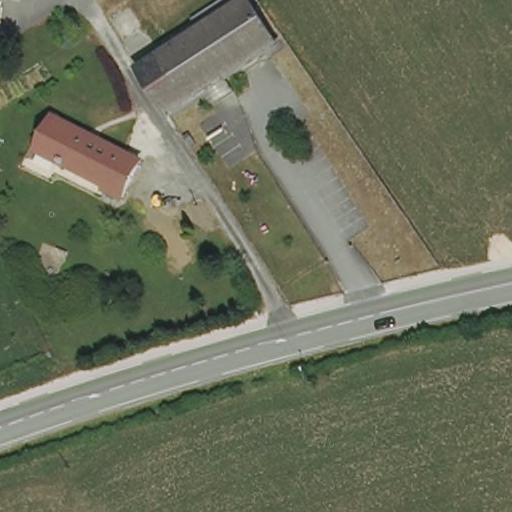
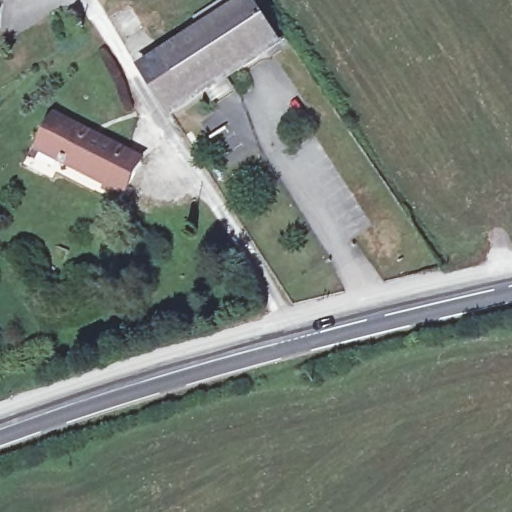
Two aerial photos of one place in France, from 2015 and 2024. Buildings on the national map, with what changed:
unchanged [(177,107),(149,63),(241,0),(258,0),(282,35),(177,107)]
unchanged [(40,142),(34,139),(39,129),(45,132),(54,112),(142,152),(125,190),(105,181),(108,174),(67,155),(65,162),(57,158),(59,153),(39,144),(40,142)]

